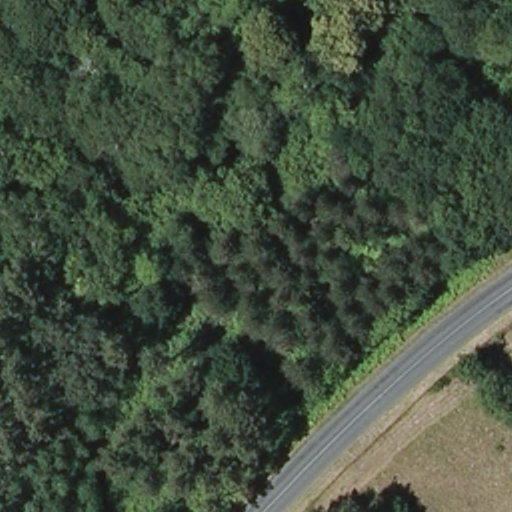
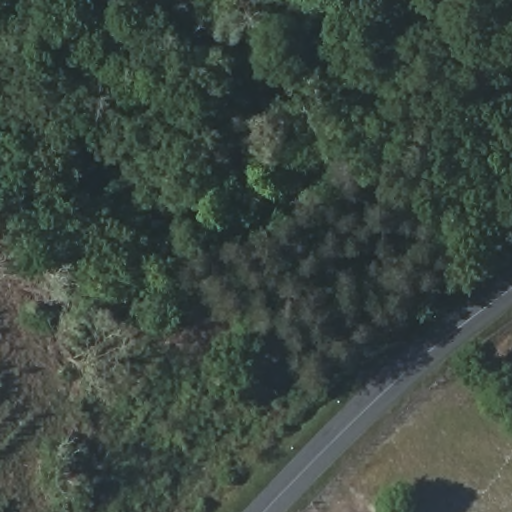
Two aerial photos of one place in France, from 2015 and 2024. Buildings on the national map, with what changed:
[]

